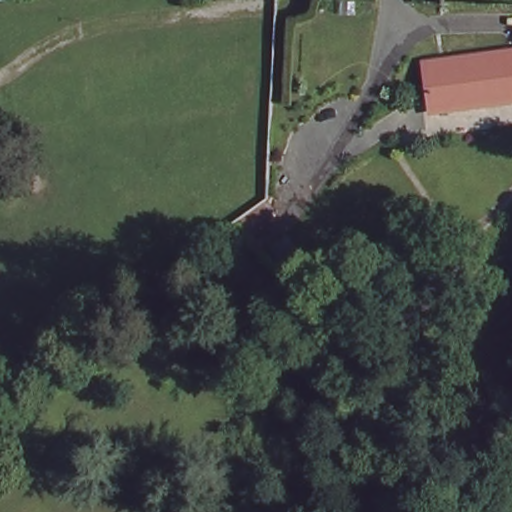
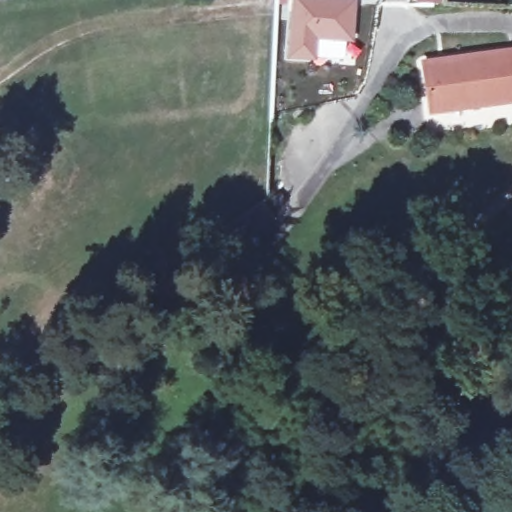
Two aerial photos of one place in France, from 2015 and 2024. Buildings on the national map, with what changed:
new [(320,40),(318,60),(285,59),(287,0),(356,0),(353,43),(320,40)]
unchanged [(426,63),(512,48),(512,98),(435,112),(426,63)]

